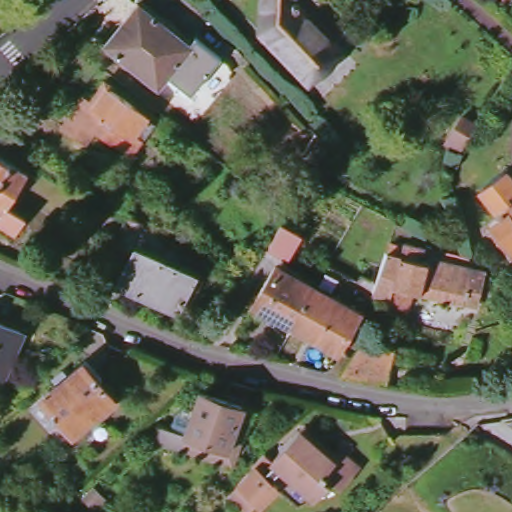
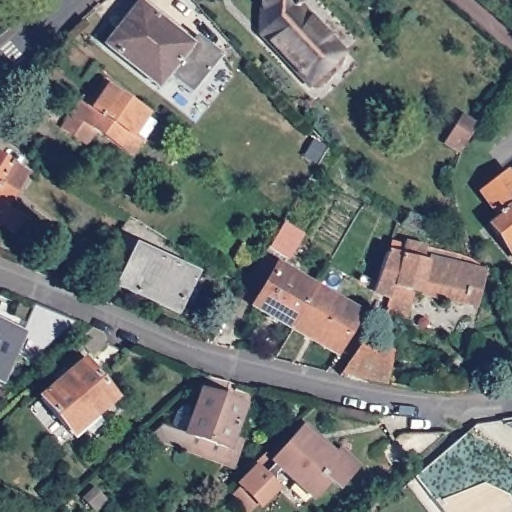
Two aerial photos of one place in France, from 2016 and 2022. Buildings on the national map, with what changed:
unchanged [(296,4),(342,52),(310,82),(262,32),(264,0),(297,0),(296,4)]
unchanged [(190,45),(196,37),(220,57),(191,94),(173,80),(168,86),(164,82),(162,81),(158,86),(106,45),(139,5),(190,45)]
unchanged [(148,146),(138,160),(100,136),(91,150),(67,134),(88,101),(96,107),(110,87),(117,92),(116,95),(152,122),(150,125),(158,131),(148,146)]
unchanged [(33,177),(12,212),(31,225),(21,241),(2,229),(7,220),(0,215),(0,157),(33,177)]
unchanged [(512,179),(512,249),(495,227),(503,221),(485,195),(510,176),(512,179)]
unchanged [(301,237),(287,261),(267,250),(282,225),(301,237)]
unchanged [(203,278),(193,301),(185,297),(177,312),(117,285),(135,247),(203,278)]
unchanged [(463,310),(412,298),(406,324),(385,318),(390,302),(373,297),(376,289),(387,256),(391,257),(394,249),(402,252),(403,247),(427,252),(425,261),(486,275),(481,297),(478,312),(463,310)]
unchanged [(253,306),(276,265),(315,287),(292,328),(253,306)]
unchanged [(330,295),(328,297),(360,315),(338,354),(292,328),(315,287),(330,295)]
unchanged [(22,333),(0,383),(0,323),(22,333)]
unchanged [(400,352),(391,387),(372,383),(343,377),(366,343),(400,352)]
unchanged [(102,378),(99,382),(115,400),(72,436),(40,399),(58,384),(55,379),(64,371),(68,376),(86,360),(102,378)]
unchanged [(237,473),(186,456),(156,446),(160,437),(164,433),(173,436),(180,417),(188,410),(200,414),(211,382),(235,389),(230,405),(247,411),(241,430),(238,440),(247,443),(237,473)]
unchanged [(0,391),(7,398),(0,405),(0,404),(0,391)]
unchanged [(240,492),(255,473),(252,470),(264,458),(271,466),(299,436),(305,430),(337,459),(340,456),(357,472),(337,494),(330,487),(314,505),(281,475),(269,485),(276,493),(258,511),(257,512),(240,512),(230,502),(240,492)]
unchanged [(400,435),(422,435),(437,434),(441,433),(446,433),(426,451),(422,455),(403,471),(398,475),(397,473),(391,465),(381,452),(400,435)]

